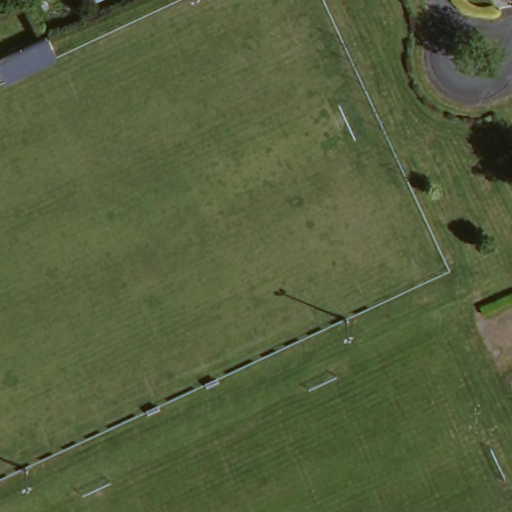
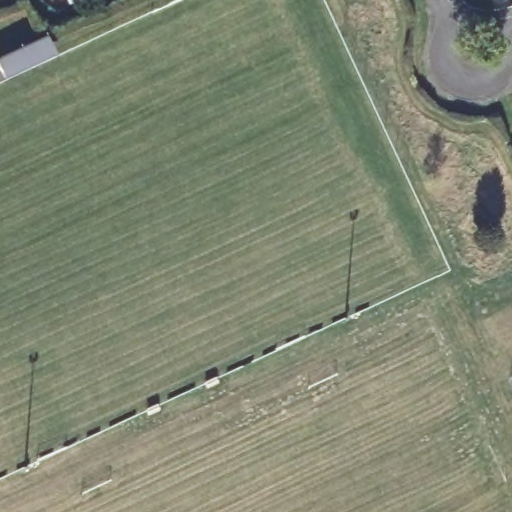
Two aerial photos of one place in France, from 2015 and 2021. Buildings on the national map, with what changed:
unchanged [(0,64),(48,44),(54,59),(1,82),(0,81),(0,64)]

